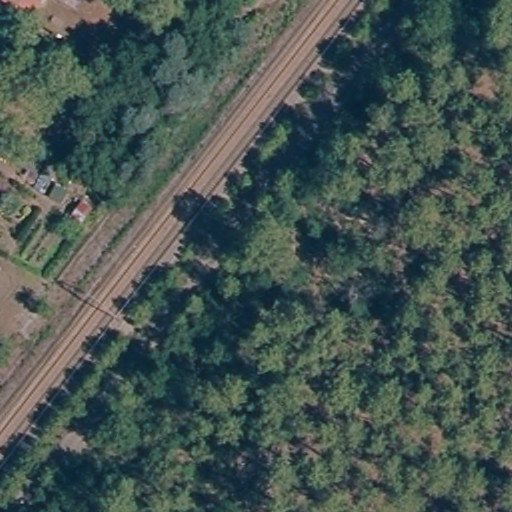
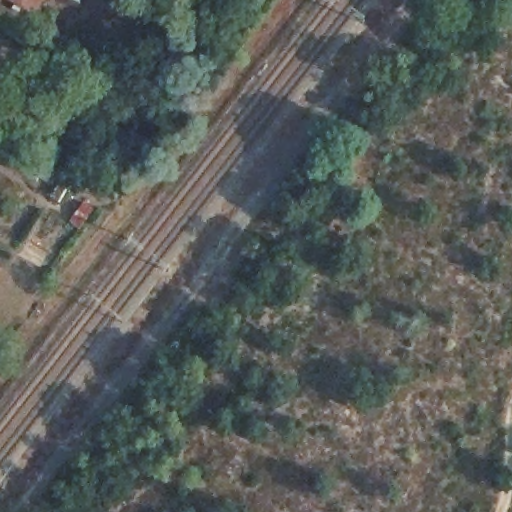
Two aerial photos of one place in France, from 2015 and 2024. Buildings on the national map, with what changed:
unchanged [(9,0),(19,0),(17,4),(9,0)]
unchanged [(32,13),(17,4),(19,0),(39,0),(32,13)]
unchanged [(52,129),(62,137),(53,148),(43,140),(52,129)]
unchanged [(77,229),(68,222),(82,204),(91,211),(77,229)]
unchanged [(0,271),(0,268),(1,268),(0,271)]

